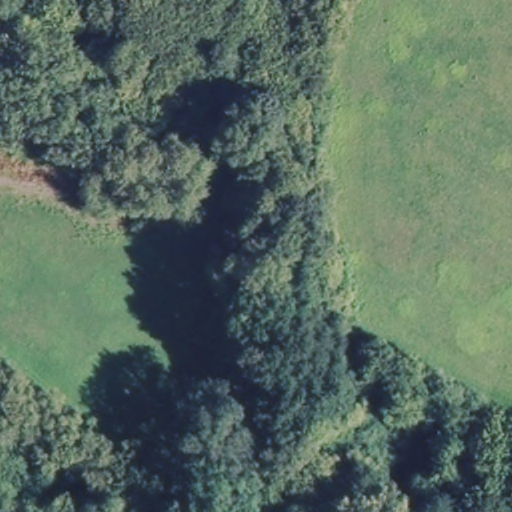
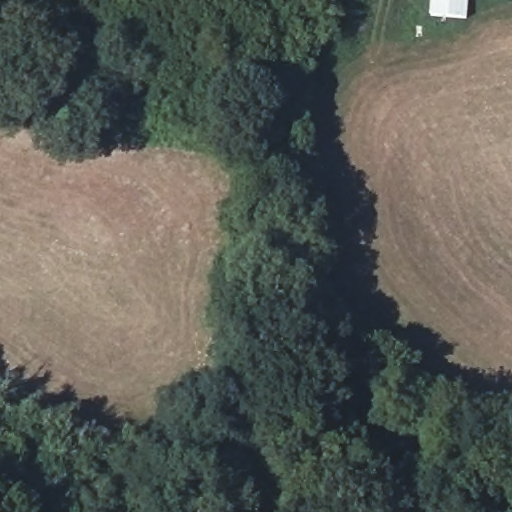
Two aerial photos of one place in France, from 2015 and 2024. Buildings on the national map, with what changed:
new [(430,0),(469,0),(467,21),(429,17),(430,0)]

